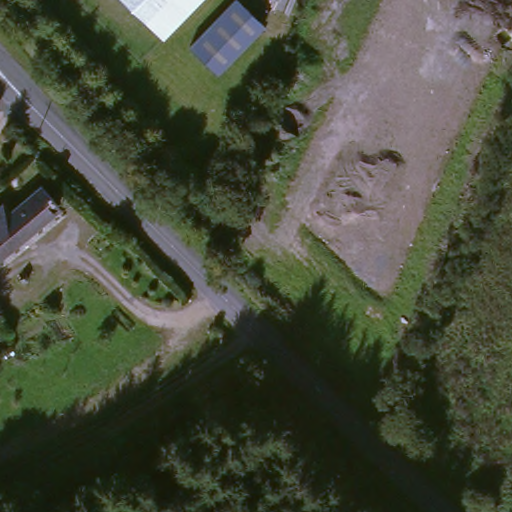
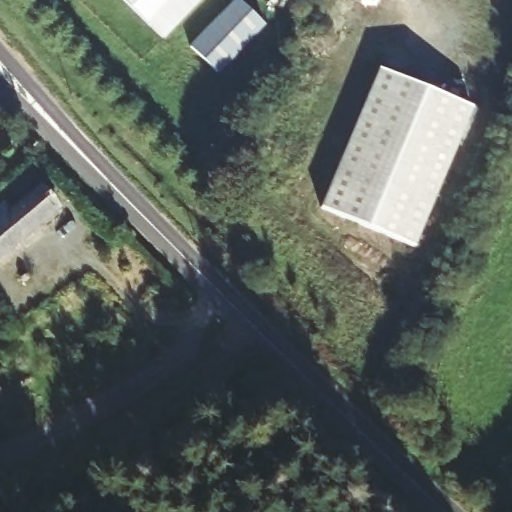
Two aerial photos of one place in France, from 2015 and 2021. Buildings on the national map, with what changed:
demolished [(110,0),(170,0),(141,31),(110,0)]
new [(123,0),(199,0),(163,39),(123,0)]
unchanged [(257,34),(212,80),(186,55),(232,9),(257,34)]
new [(379,70),(471,109),(414,248),(321,209),(379,70)]
unchanged [(57,215),(0,258),(0,217),(4,224),(42,195),(57,215)]

